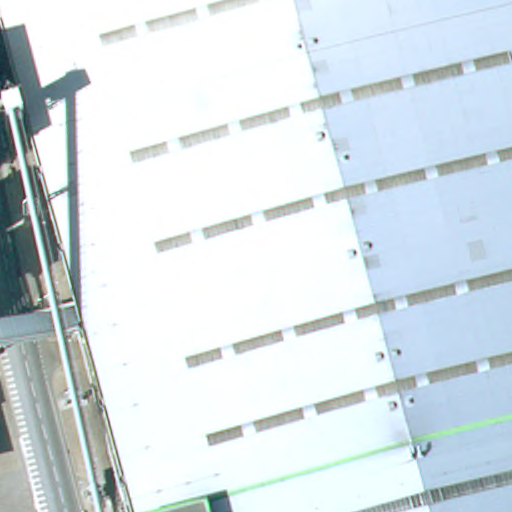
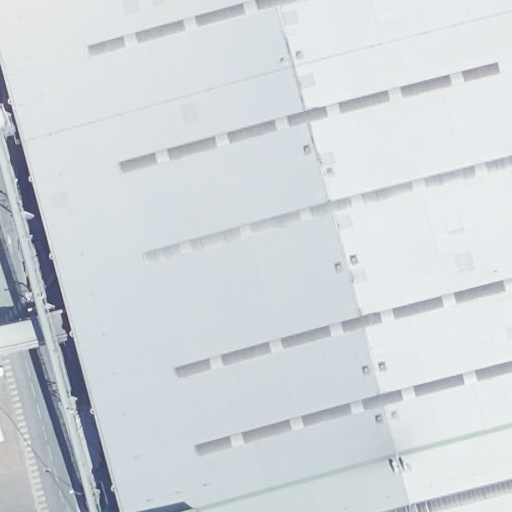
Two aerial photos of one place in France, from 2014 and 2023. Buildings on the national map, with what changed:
unchanged [(130,490),(0,7),(0,0),(512,0),(512,512),(118,512),(114,495),(130,490)]

